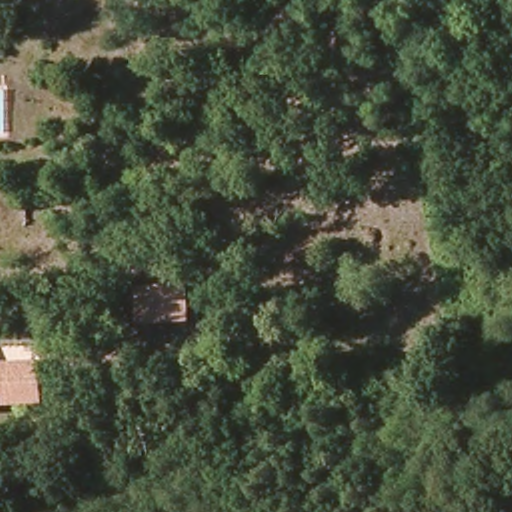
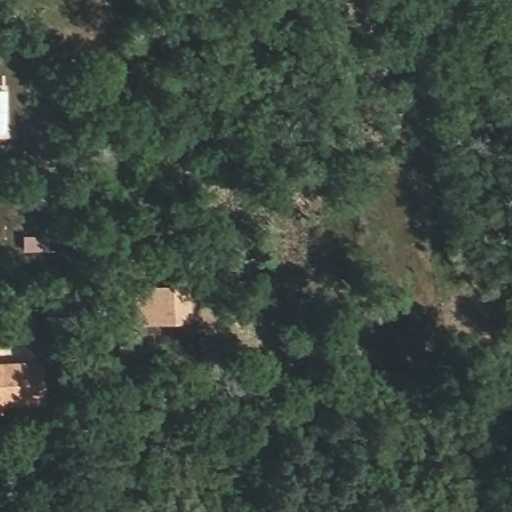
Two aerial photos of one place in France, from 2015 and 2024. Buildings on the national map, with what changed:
unchanged [(187,284),(190,323),(135,327),(132,288),(187,284)]
unchanged [(46,405),(0,411),(0,365),(49,360),(46,405)]

